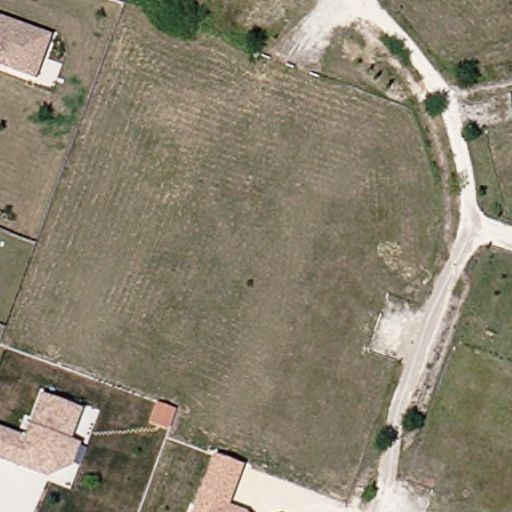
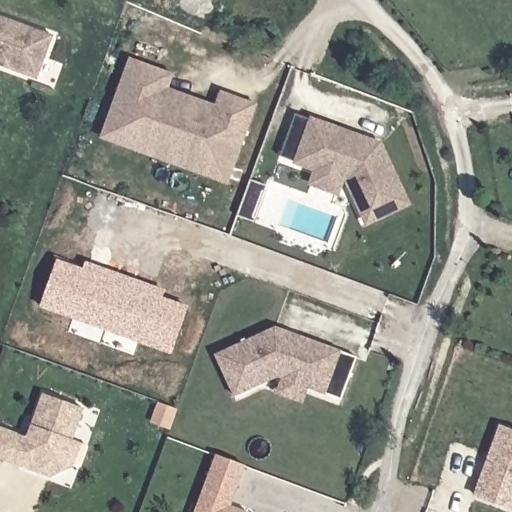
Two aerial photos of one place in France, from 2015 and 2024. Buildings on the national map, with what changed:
unchanged [(33,78),(0,66),(0,18),(49,36),(33,78)]
new [(129,56),(174,72),(169,88),(214,103),(218,89),(256,101),(227,183),(99,138),(129,56)]
new [(366,222),(348,180),(342,178),(337,191),(310,185),(314,169),(278,157),(295,114),(310,120),(380,144),(406,202),(366,222)]
new [(249,178),(266,185),(252,221),(235,214),(249,178)]
new [(56,258),(83,268),(85,261),(166,290),(163,297),(190,306),(171,354),(40,307),(56,258)]
new [(273,327),(340,351),(356,357),(341,400),(325,394),(307,389),(303,403),(275,393),(281,377),(276,377),(235,398),(214,354),(273,327)]
unchanged [(0,429),(24,438),(40,393),(79,407),(67,438),(76,441),(69,463),(65,465),(45,474),(25,466),(17,463),(0,457),(0,429)]
new [(500,423),(512,428),(512,510),(472,495),(500,423)]
unchanged [(245,466),(231,505),(246,510),(248,512),(194,512),(215,455),(245,466)]

